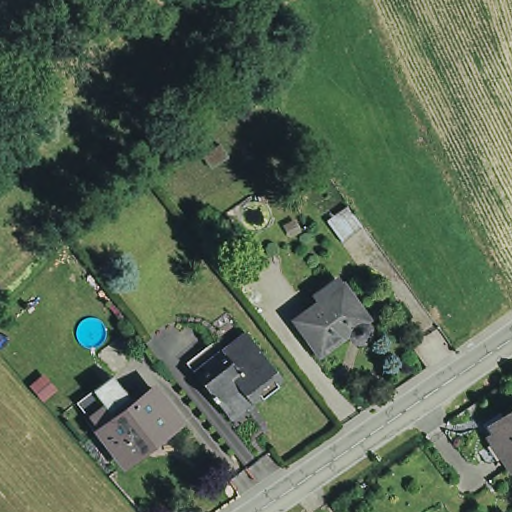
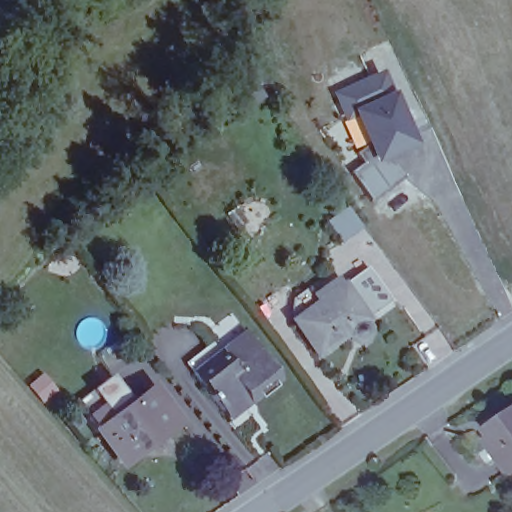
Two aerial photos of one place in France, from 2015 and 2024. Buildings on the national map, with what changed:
new [(385,75),(395,97),(397,95),(415,142),(390,154),(408,178),(375,205),(352,174),(365,164),(357,154),(372,142),(360,115),(347,120),(338,96),(385,75)]
unchanged [(327,222),(348,207),(363,227),(342,242),(327,222)]
unchanged [(295,326),(345,291),(369,326),(320,361),(295,326)]
unchanged [(190,373),(242,333),(277,379),(225,419),(190,373)]
new [(60,392),(45,403),(30,387),(45,375),(60,392)]
unchanged [(183,427),(129,469),(104,437),(93,422),(121,401),(132,415),(158,395),(183,427)]
unchanged [(504,463),(502,466),(482,434),(495,425),(489,417),(512,402),(512,476),(504,463)]

